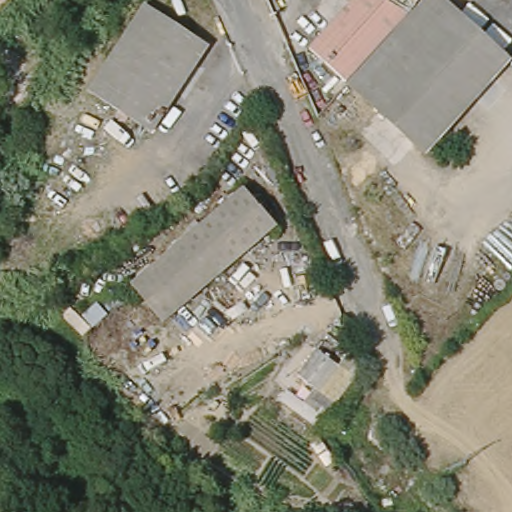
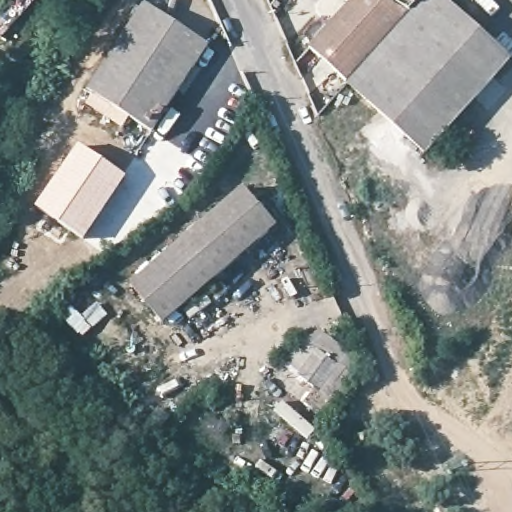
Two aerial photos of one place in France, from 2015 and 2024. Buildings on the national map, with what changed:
unchanged [(314,50),(358,0),(427,0),(417,11),(353,84),(314,50)]
unchanged [(429,153),(353,84),(417,11),(427,0),(444,0),(511,59),(429,153)]
unchanged [(146,2),(209,41),(156,133),(89,94),(146,2)]
new [(77,144),(127,177),(83,240),(34,208),(77,144)]
unchanged [(252,190),(284,235),(163,322),(131,278),(252,190)]
unchanged [(315,350),(354,377),(336,405),(299,376),(315,350)]

